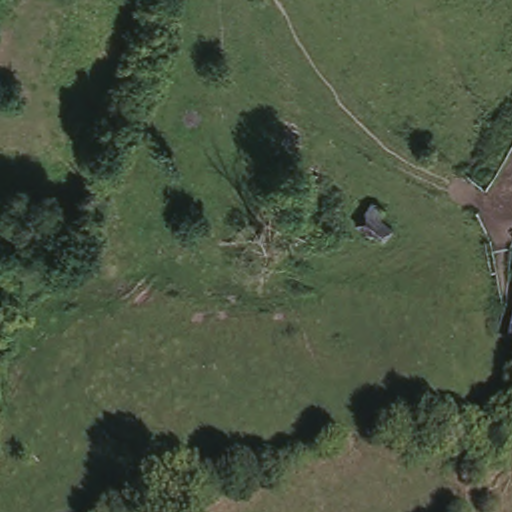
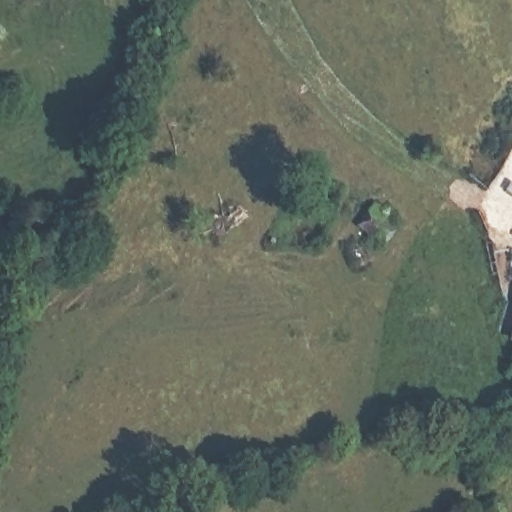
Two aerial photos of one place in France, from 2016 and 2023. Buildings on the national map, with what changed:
unchanged [(370,201),(384,211),(379,221),(393,230),(384,245),(355,225),(370,201)]
unchanged [(512,318),(512,343),(505,341),(512,318)]

